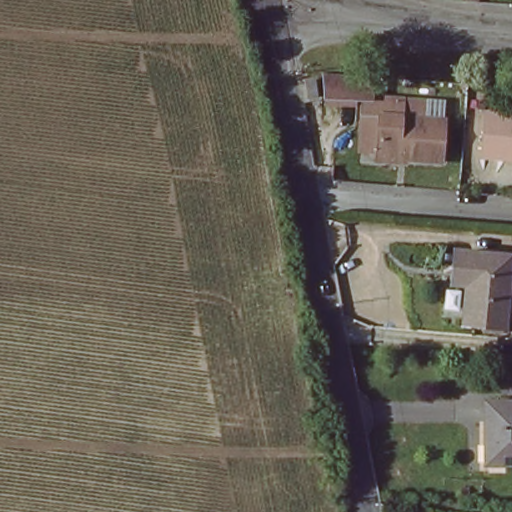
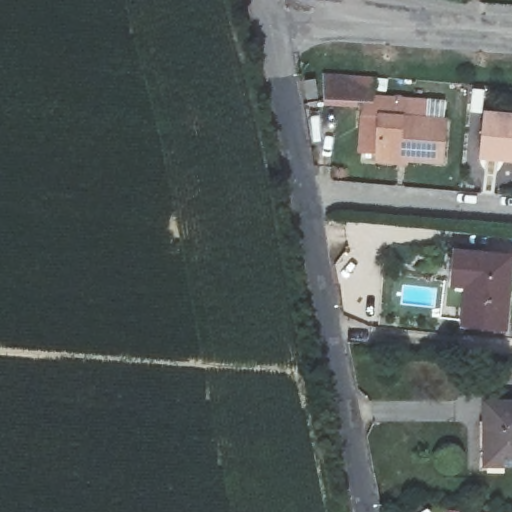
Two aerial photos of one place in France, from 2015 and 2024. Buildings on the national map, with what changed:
unchanged [(379,143),(381,116),(363,114),(364,95),(403,97),(401,112),(444,116),(441,157),(404,154),(379,151),(379,143)]
unchanged [(482,153),(486,114),(512,116),(512,157),(482,153)]
unchanged [(512,251),(512,269),(509,323),(468,321),(471,282),(455,280),(456,271),(458,249),(512,251)]
unchanged [(487,467),(488,406),(512,406),(512,467),(487,467)]

